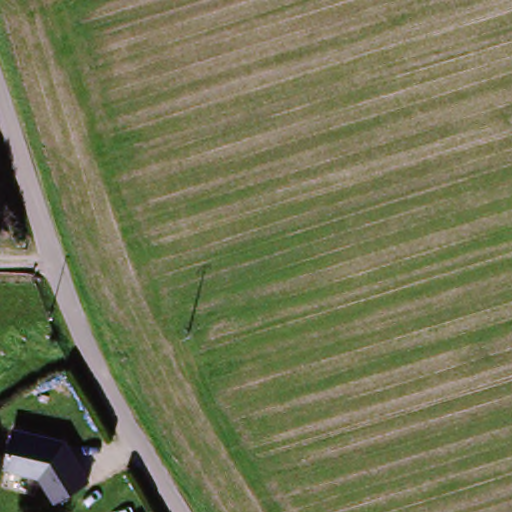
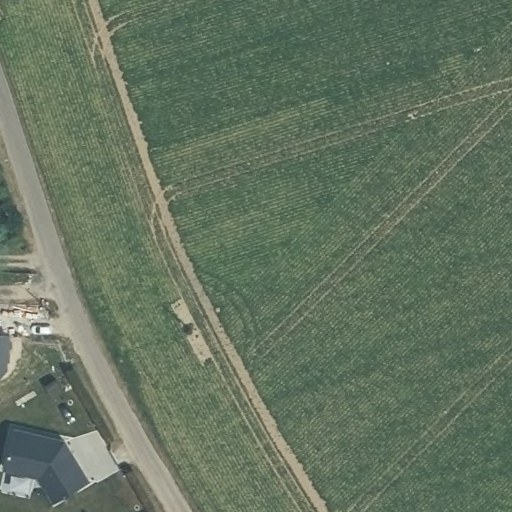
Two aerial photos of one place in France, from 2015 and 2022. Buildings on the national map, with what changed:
new [(10,367),(3,374),(0,375),(0,329),(8,328),(10,367)]
unchanged [(15,435),(65,444),(90,481),(55,502),(38,483),(10,472),(15,435)]

